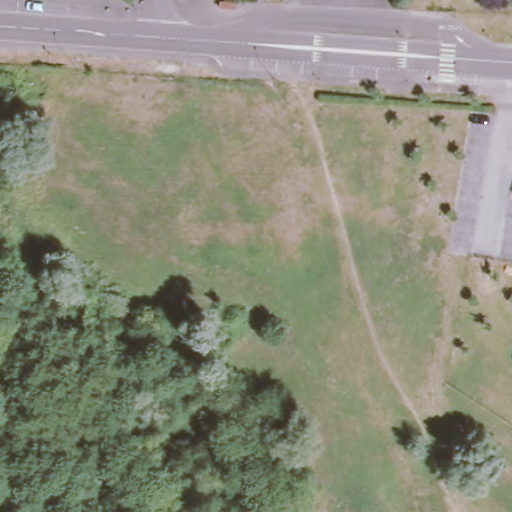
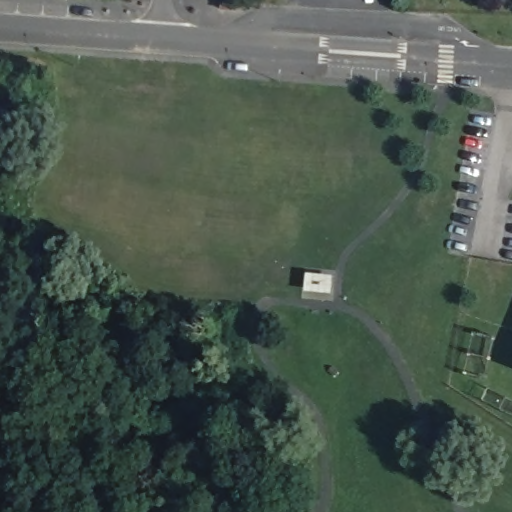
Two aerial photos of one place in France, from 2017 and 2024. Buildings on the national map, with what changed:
unchanged [(235,11),(218,10),(218,3),(218,2),(235,4),(235,11)]

